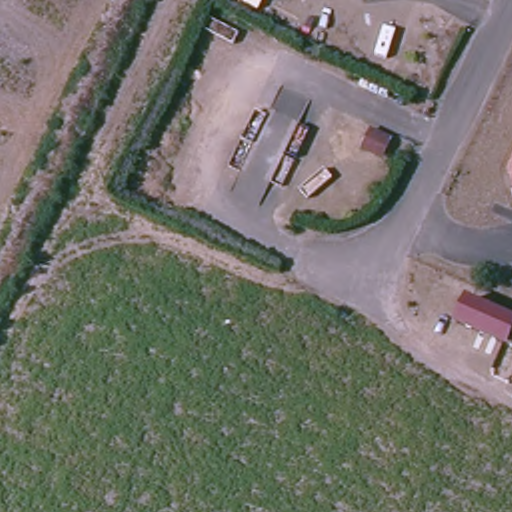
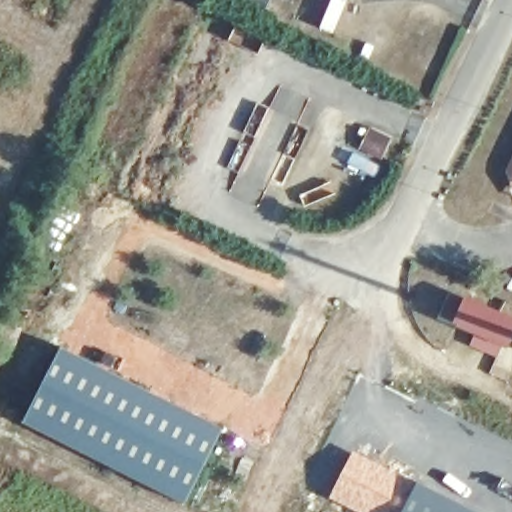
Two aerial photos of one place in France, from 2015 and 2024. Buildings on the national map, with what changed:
unchanged [(391,141),(379,164),(350,148),(362,127),(391,141)]
unchanged [(512,339),(469,322),(478,298),(512,312),(512,339)]
new [(223,428),(185,504),(25,422),(62,348),(223,428)]
new [(401,474),(385,512),(358,512),(328,497),(352,450),(401,474)]
new [(477,512),(400,512),(416,480),(477,512)]

